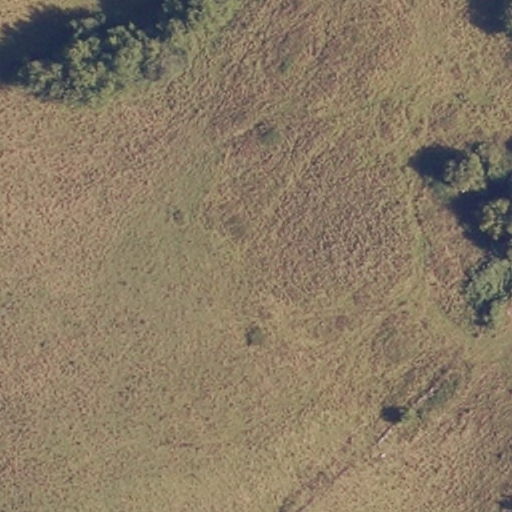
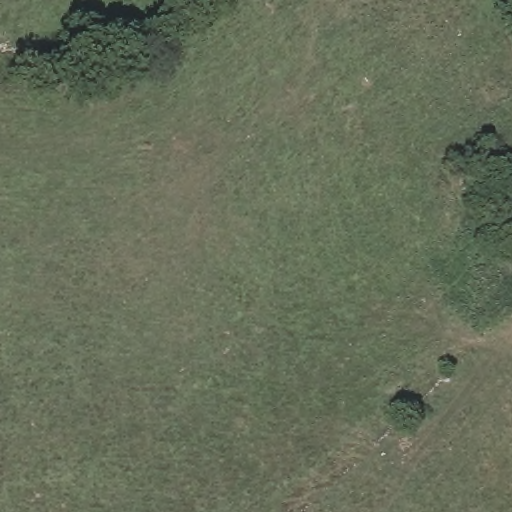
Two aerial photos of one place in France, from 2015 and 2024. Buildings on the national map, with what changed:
[]

